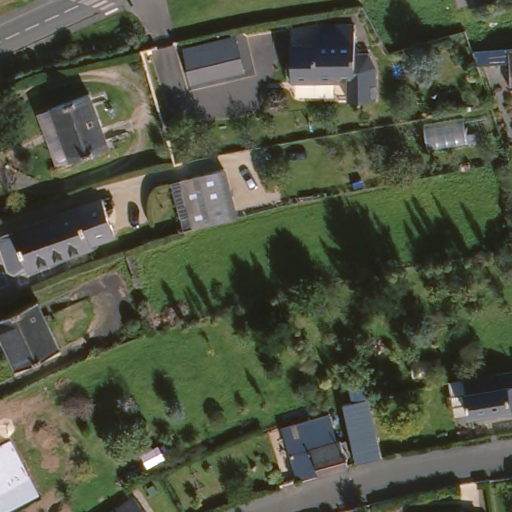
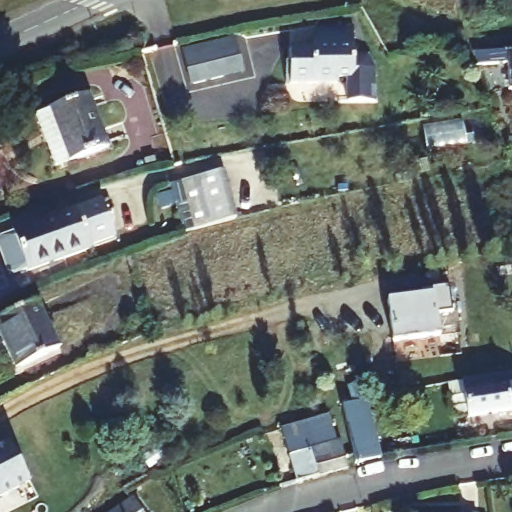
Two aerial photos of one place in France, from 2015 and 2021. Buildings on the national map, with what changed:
unchanged [(360,23),(364,49),(378,46),(386,59),(393,92),(366,97),(362,74),(304,85),(298,51),(330,45),(327,28),(360,23)]
unchanged [(243,36),(250,71),(200,81),(194,47),(243,36)]
unchanged [(505,49),(512,48),(512,90),(507,91),(505,49)]
unchanged [(94,94),(110,150),(61,165),(42,110),(94,94)]
unchanged [(197,175),(226,170),(237,218),(207,225),(197,175)]
unchanged [(17,266),(9,238),(12,231),(26,227),(25,225),(109,197),(122,234),(102,241),(104,245),(39,268),(37,265),(24,270),(17,266)]
new [(417,293),(416,286),(450,281),(453,308),(437,310),(440,332),(393,339),(387,298),(417,293)]
unchanged [(4,345),(11,341),(0,318),(0,316),(36,298),(46,296),(57,319),(69,342),(29,362),(32,370),(20,376),(4,345)]
unchanged [(465,405),(463,388),(500,382),(512,381),(512,422),(466,428),(465,405)]
unchanged [(345,407),(369,401),(385,458),(360,464),(345,407)]
unchanged [(285,425),(335,410),(337,409),(346,440),(319,448),(293,455),(285,425)]
unchanged [(293,455),(319,448),(346,440),(352,466),(301,481),(293,455)]
new [(7,458),(27,498),(0,511),(0,462),(7,458)]
unchanged [(148,512),(125,512),(141,502),(148,512)]

